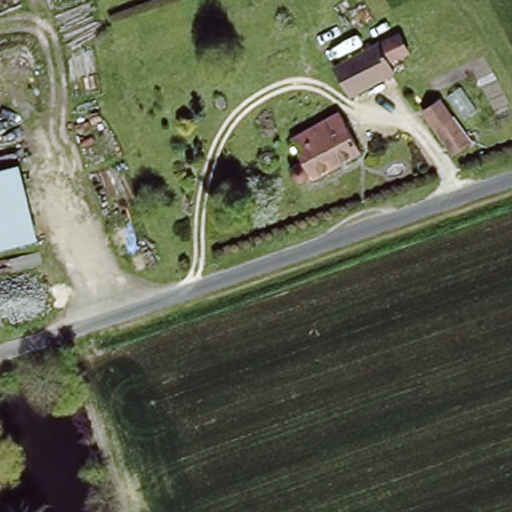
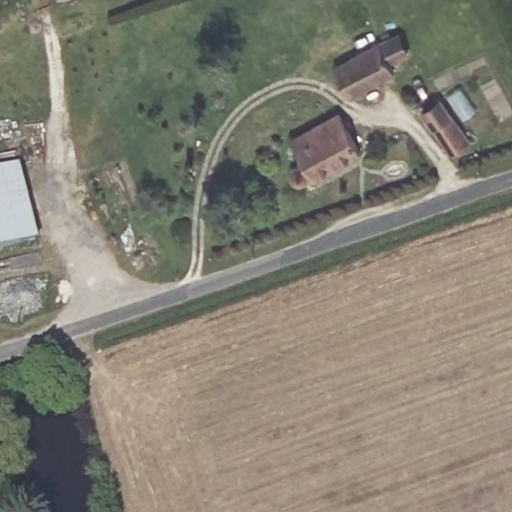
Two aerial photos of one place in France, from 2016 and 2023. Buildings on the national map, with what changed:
unchanged [(383,55),(393,70),(350,96),(332,67),(377,42),(383,55)]
unchanged [(440,97),(472,141),(453,155),(420,110),(440,97)]
unchanged [(303,184),(300,183),(298,181),(296,180),(295,177),(295,175),(295,172),(295,170),(297,167),(299,165),(305,162),(292,141),(336,115),(359,154),(308,184),(305,184),(303,184)]
unchanged [(0,173),(13,169),(38,239),(0,251),(0,173)]

